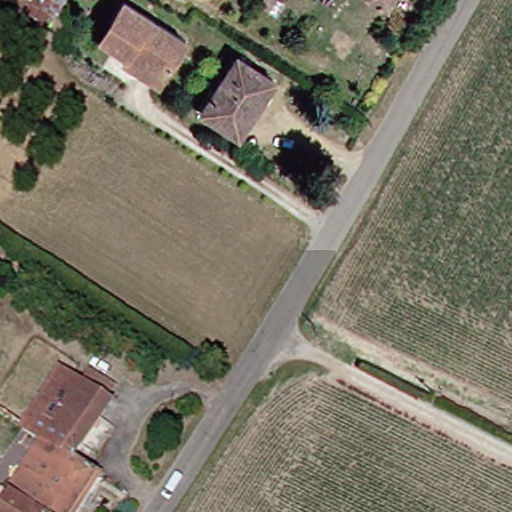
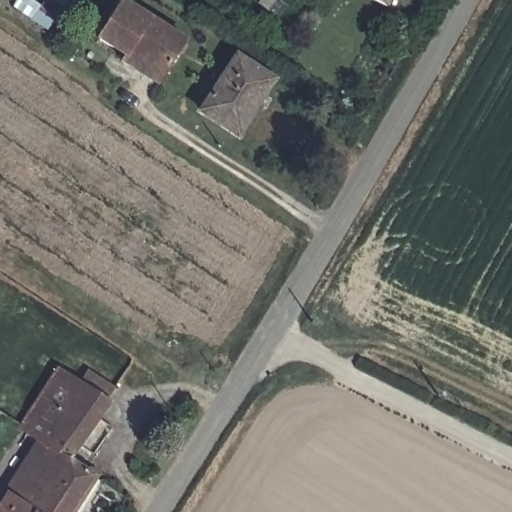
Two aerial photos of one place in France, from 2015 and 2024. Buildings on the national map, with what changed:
unchanged [(121,64),(126,56),(94,35),(117,0),(123,0),(185,39),(164,73),(155,86),(121,64)]
unchanged [(382,6),(371,0),(386,0),(382,6)]
unchanged [(196,111),(231,54),(267,76),(249,109),(235,133),(227,128),(196,111)]
unchanged [(15,425),(52,367),(69,377),(80,361),(114,383),(102,399),(66,455),(87,469),(59,512),(0,512),(0,494),(0,463),(22,430),(15,425)]

